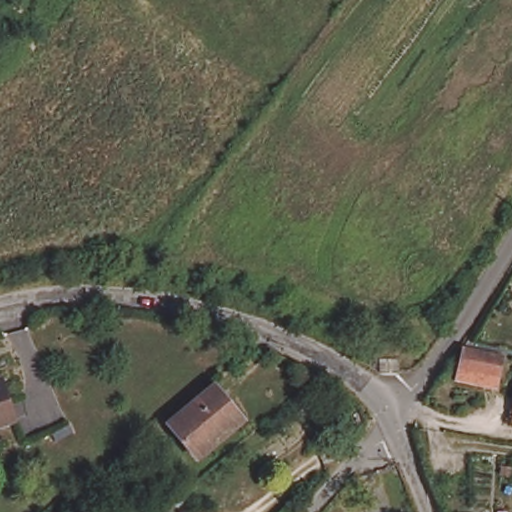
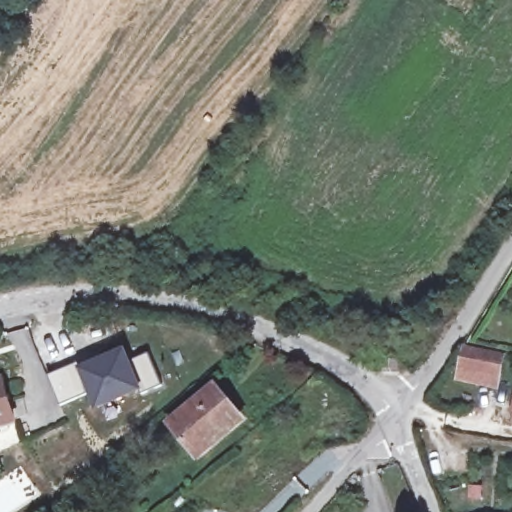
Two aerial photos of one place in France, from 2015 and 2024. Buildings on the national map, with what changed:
new [(150,351),(164,385),(146,391),(96,410),(90,395),(77,363),(127,345),(132,359),(150,351)]
unchanged [(482,354),(502,357),(499,379),(479,376),(470,375),(467,383),(462,382),(457,381),(463,350),(482,354)]
new [(77,363),(90,395),(62,406),(48,375),(77,363)]
unchanged [(12,413),(0,418),(0,379),(12,413)]
unchanged [(240,417),(195,455),(167,421),(214,383),(240,417)]
demolished [(512,412),(508,411),(512,388),(512,412)]

